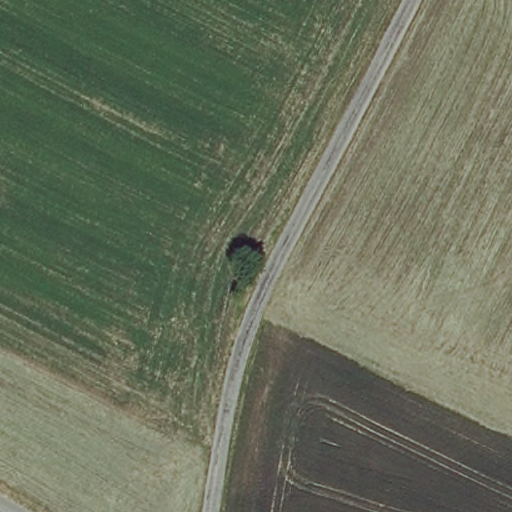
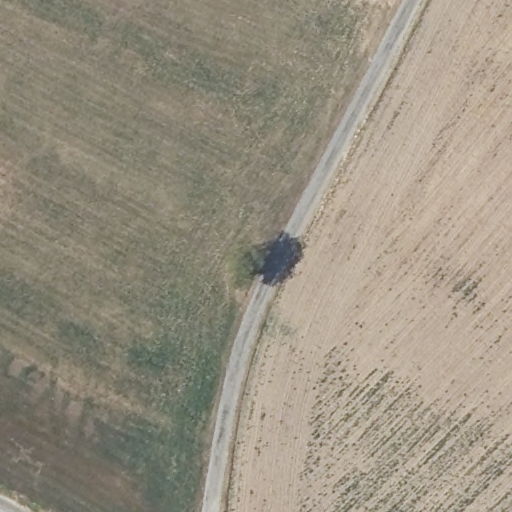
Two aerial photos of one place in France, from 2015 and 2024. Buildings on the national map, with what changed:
[]

